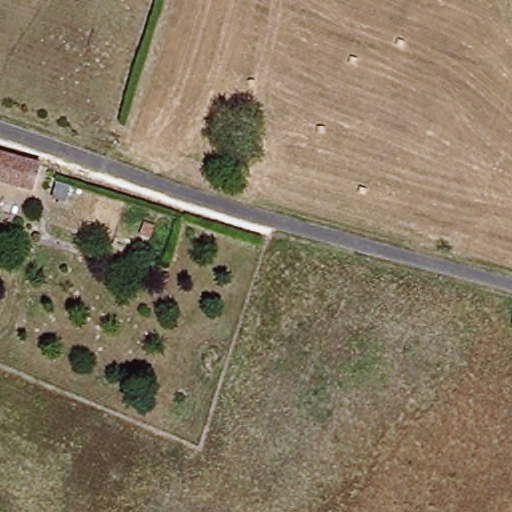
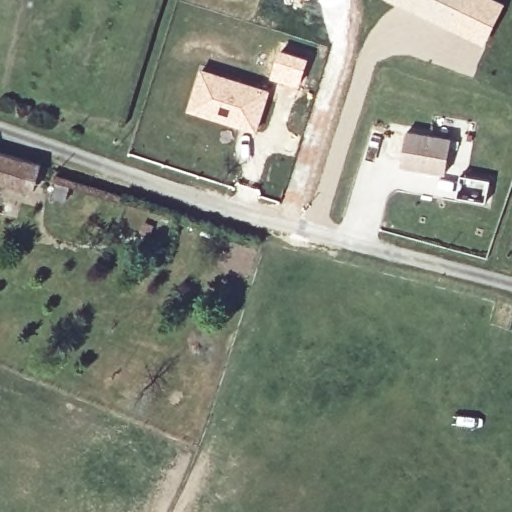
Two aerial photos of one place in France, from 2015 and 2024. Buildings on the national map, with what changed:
new [(465,0),(452,25),(395,0),(465,0)]
new [(280,48),(310,56),(300,87),(270,78),(280,48)]
new [(200,67),(271,90),(258,131),(187,109),(200,67)]
new [(408,129),(452,138),(446,173),(403,166),(408,129)]
unchanged [(0,151),(48,166),(40,193),(0,182),(0,151)]
demolished [(512,322),(512,332),(508,332),(512,322)]

